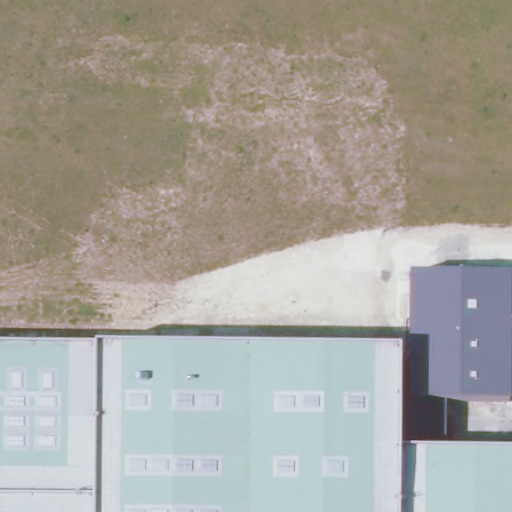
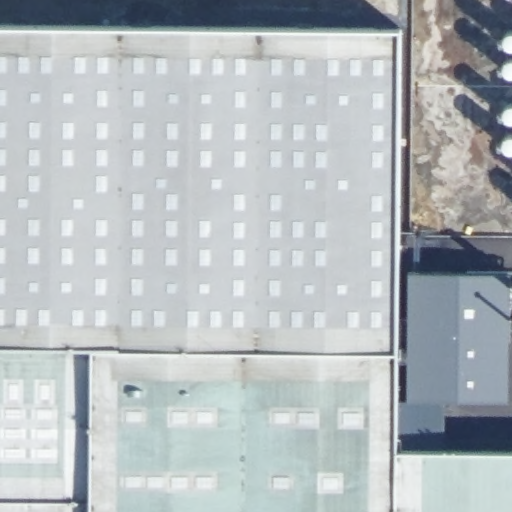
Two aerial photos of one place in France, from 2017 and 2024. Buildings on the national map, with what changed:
new [(402,28),(397,347),(298,346),(0,344),(0,25),(402,28)]
unchanged [(510,274),(510,402),(428,400),(428,340),(409,339),(410,273),(510,274)]
new [(428,340),(428,400),(446,401),(447,452),(398,453),(400,434),(400,402),(400,399),(408,400),(409,339),(428,340)]
unchanged [(400,402),(400,434),(398,453),(512,452),(512,512),(0,512),(0,361),(400,365),(400,402)]

